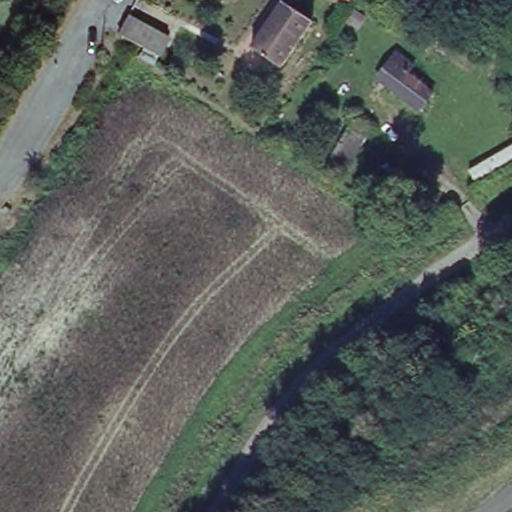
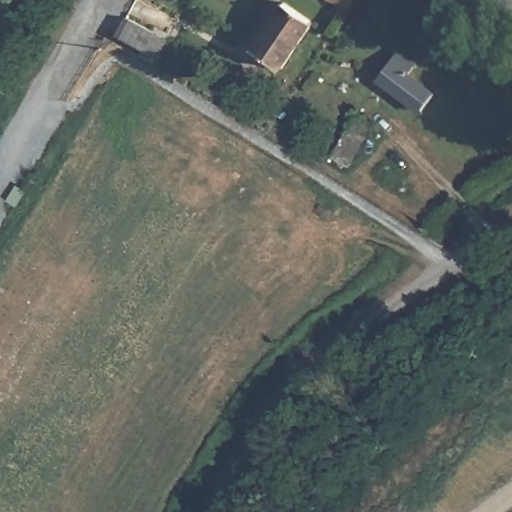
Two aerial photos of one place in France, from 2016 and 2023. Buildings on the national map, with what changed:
unchanged [(282,6),(309,25),(280,69),(253,50),(282,6)]
unchanged [(153,61),(116,39),(129,16),(167,38),(153,61)]
unchanged [(397,55),(411,64),(405,73),(437,96),(425,112),(379,81),(397,55)]
unchanged [(344,111),(372,130),(355,159),(328,140),(344,111)]

